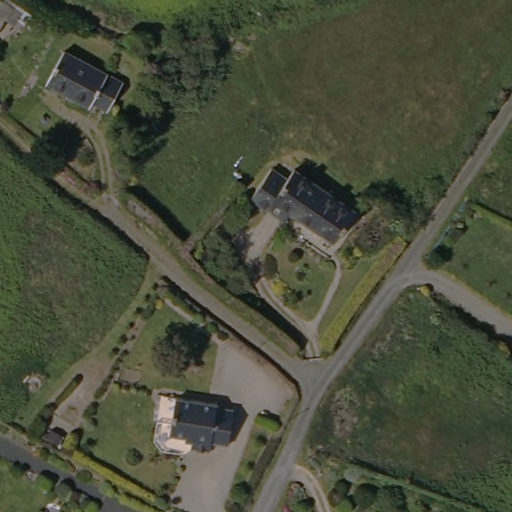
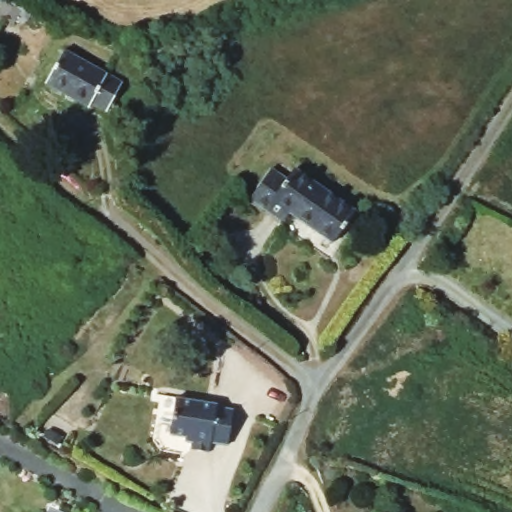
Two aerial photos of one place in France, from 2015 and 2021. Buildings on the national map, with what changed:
unchanged [(0,32),(0,18),(8,22),(0,32)]
unchanged [(123,88),(108,111),(93,102),(89,107),(46,81),(64,51),(123,88)]
unchanged [(284,214),(249,190),(269,162),(286,174),(293,165),(349,203),(331,232),(290,206),(284,214)]
unchanged [(229,446),(211,445),(210,455),(193,451),(194,438),(173,434),(180,400),(212,405),(214,407),(234,410),(229,446)]

